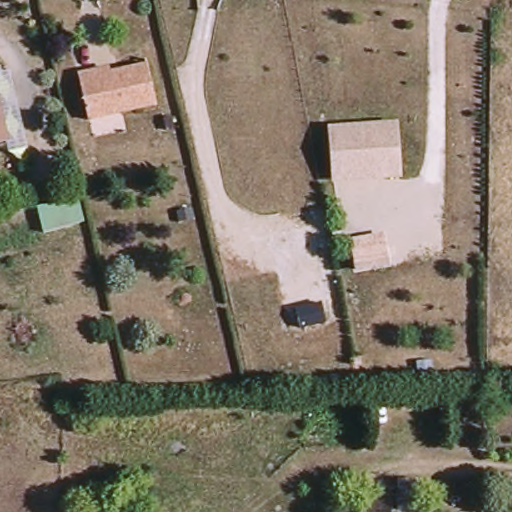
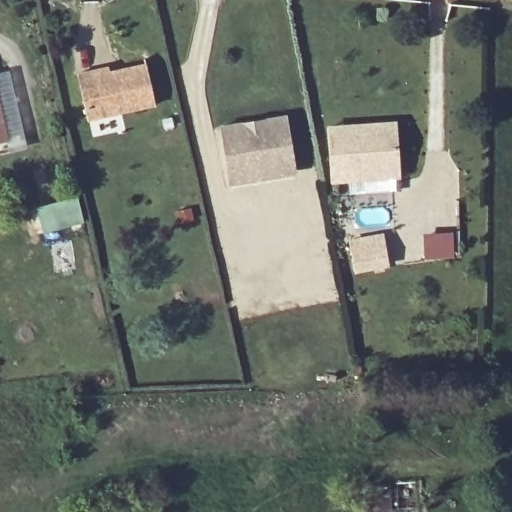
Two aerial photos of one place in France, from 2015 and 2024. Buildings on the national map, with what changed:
unchanged [(151,101),(79,116),(69,66),(91,62),(93,73),(145,65),(151,101)]
new [(287,115),(296,177),(228,187),(219,126),(287,115)]
unchanged [(399,121),(402,177),(331,182),(328,126),(399,121)]
unchanged [(388,244),(391,268),(355,275),(351,251),(388,244)]

